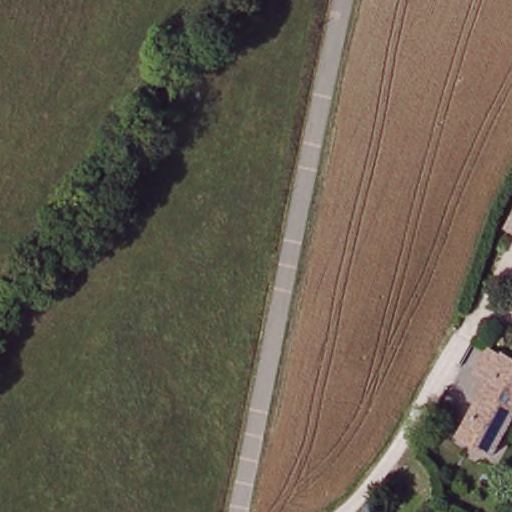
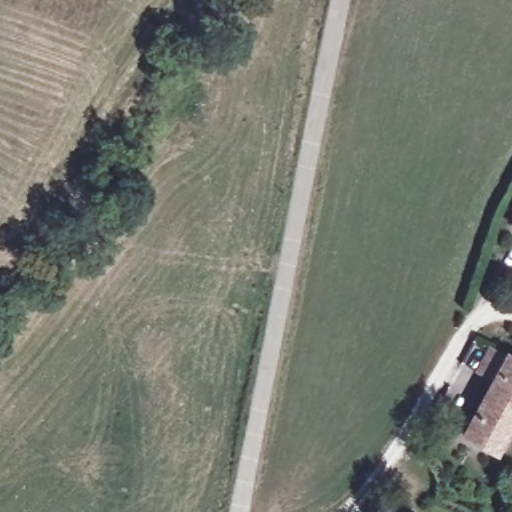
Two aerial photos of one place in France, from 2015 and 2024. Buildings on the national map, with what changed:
unchanged [(497,458),(467,443),(497,387),(479,377),(492,353),(512,364),(512,431),(497,458)]

